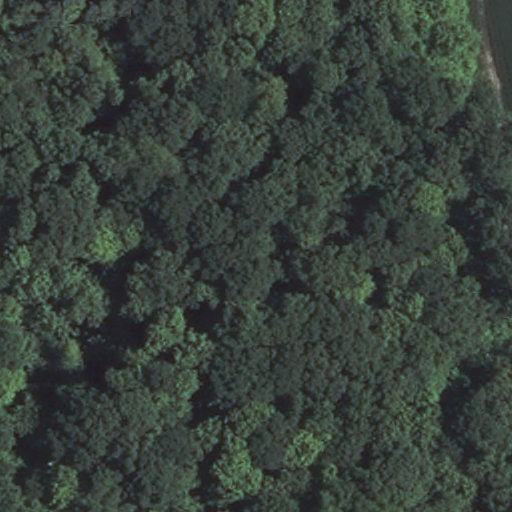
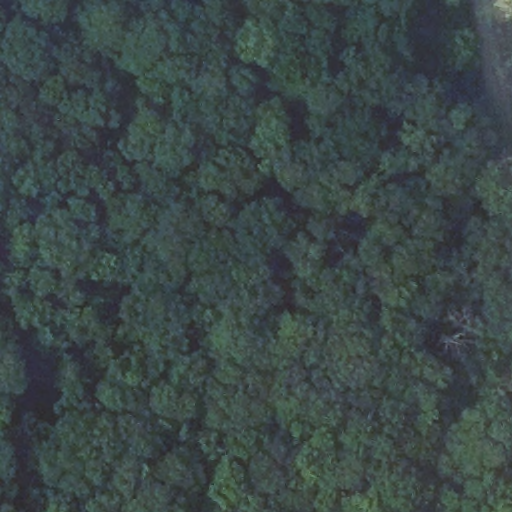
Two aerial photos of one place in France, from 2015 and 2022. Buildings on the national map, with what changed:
unchanged [(239,236),(239,242),(229,242),(228,236),(239,236)]

